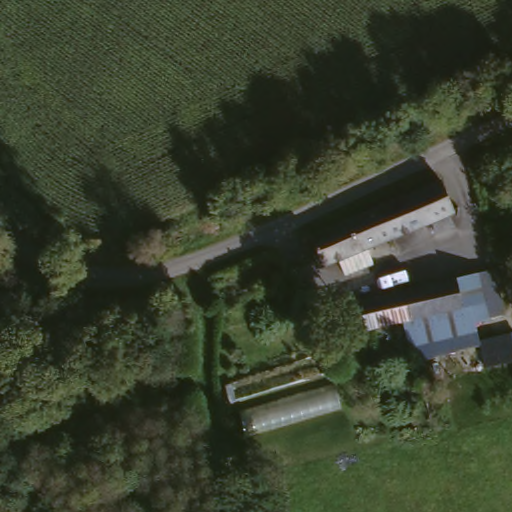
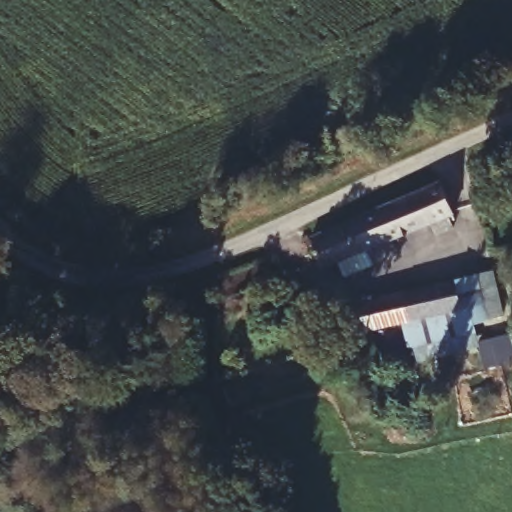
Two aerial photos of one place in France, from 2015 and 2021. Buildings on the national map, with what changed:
unchanged [(343,275),(337,261),(320,268),(318,262),(307,238),(438,183),(438,182),(441,189),(442,192),(450,213),(442,216),(446,225),(431,231),(428,223),(363,250),(370,265),(343,275)]
unchanged [(506,316),(475,329),(478,336),(408,353),(402,329),(360,338),(355,303),(458,280),(495,273),(506,316)]

